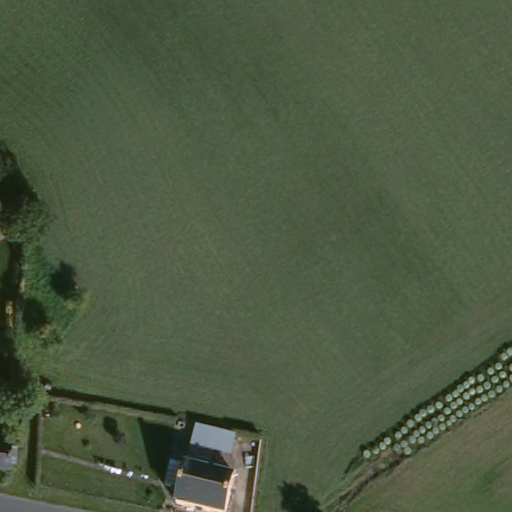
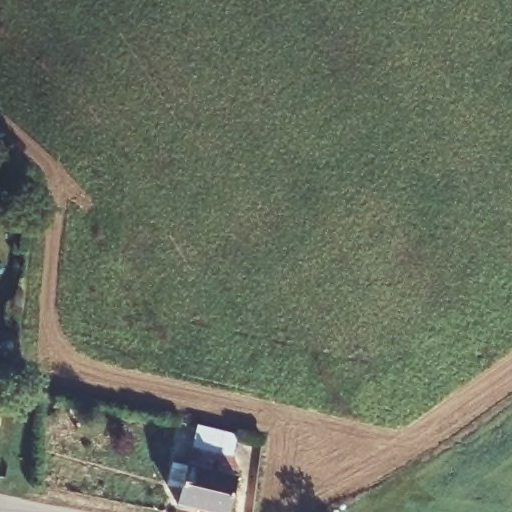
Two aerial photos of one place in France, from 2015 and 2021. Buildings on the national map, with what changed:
unchanged [(204,422),(224,425),(246,430),(238,446),(242,460),(240,473),(195,461),(204,422)]
unchanged [(10,461),(0,460),(0,425),(11,425),(10,461)]
unchanged [(230,512),(227,512),(182,501),(186,483),(172,480),(177,457),(192,460),(195,461),(240,473),(230,512)]

